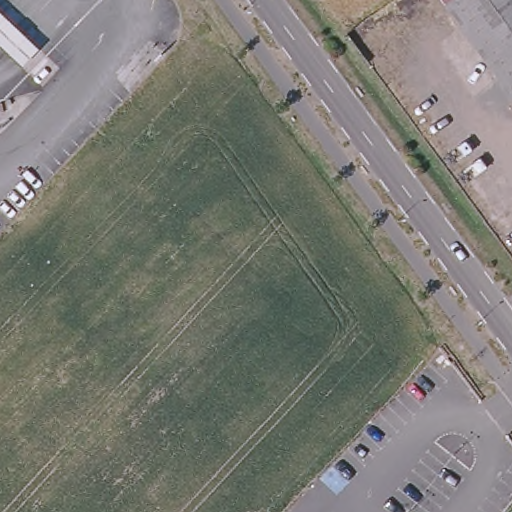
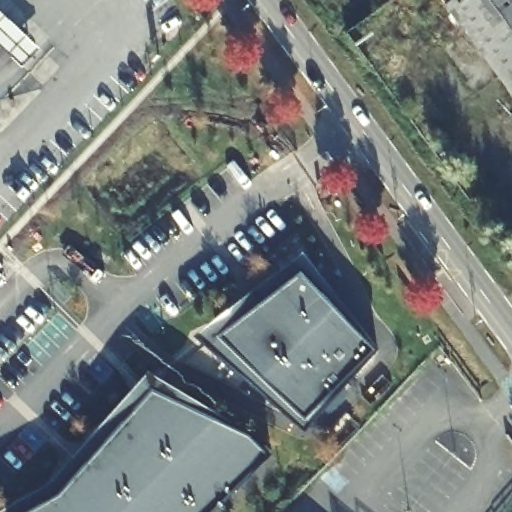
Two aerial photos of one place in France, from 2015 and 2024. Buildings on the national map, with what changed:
unchanged [(512,0),(512,96),(442,0),(512,0)]
unchanged [(34,76),(0,46),(0,11),(54,60),(34,76)]
new [(379,350),(305,429),(196,334),(304,252),(379,350)]
new [(248,430),(273,454),(213,512),(0,512),(0,511),(54,480),(148,372),(248,430)]

